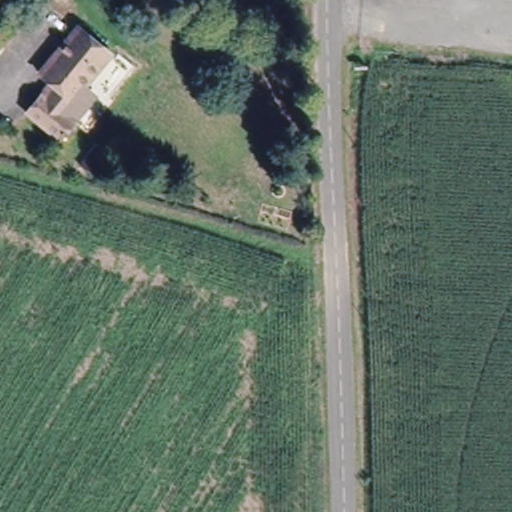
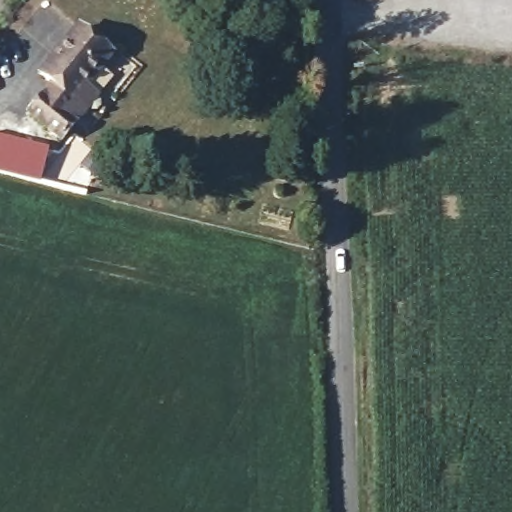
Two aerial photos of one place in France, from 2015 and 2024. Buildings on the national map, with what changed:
unchanged [(90,89),(99,98),(63,141),(30,114),(57,81),(47,72),(76,37),(86,25),(122,51),(90,89)]
new [(40,181),(0,171),(0,132),(50,145),(40,181)]

